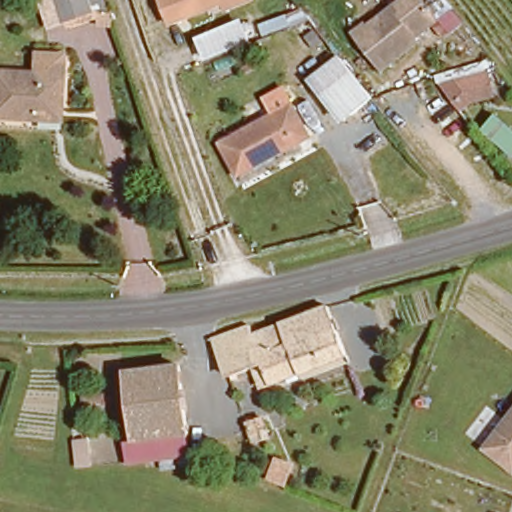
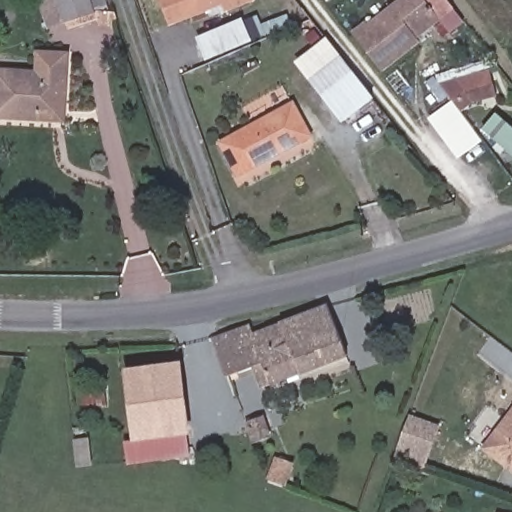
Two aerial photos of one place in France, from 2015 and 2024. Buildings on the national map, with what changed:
unchanged [(54,0),(105,0),(115,31),(95,32),(92,16),(65,25),(54,0)]
unchanged [(226,12),(225,7),(172,26),(161,0),(255,0),(226,12)]
unchanged [(407,1),(409,0),(428,0),(442,19),(417,39),(404,50),(377,16),(397,0),(407,0),(407,1)]
unchanged [(205,63),(196,36),(241,16),(251,39),(205,63)]
unchanged [(404,50),(375,73),(348,39),(377,16),(404,50)]
unchanged [(375,98),(344,124),(310,81),(341,55),(375,98)]
unchanged [(37,122),(0,120),(0,76),(37,77),(37,57),(66,59),(64,111),(64,123),(37,122)]
unchanged [(480,58),(490,82),(452,96),(436,76),(480,58)]
unchanged [(286,105),(305,140),(240,177),(221,142),(286,105)]
unchanged [(261,331),(327,310),(345,358),(251,390),(245,374),(232,377),(216,335),(256,324),(261,331)]
unchanged [(180,379),(181,450),(129,451),(128,380),(180,379)]
unchanged [(482,445),(512,408),(512,467),(511,468),(503,462),(482,445)]
new [(407,424),(410,414),(439,424),(436,434),(427,459),(424,469),(394,459),(398,449),(407,424)]
unchanged [(91,424),(93,453),(75,452),(74,424),(91,424)]
unchanged [(287,444),(305,446),(302,471),(285,469),(287,444)]

